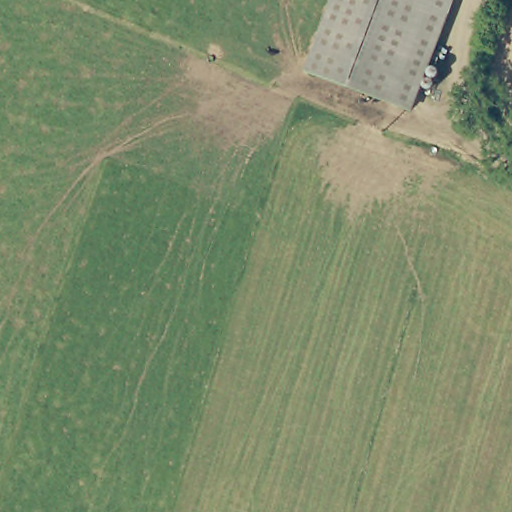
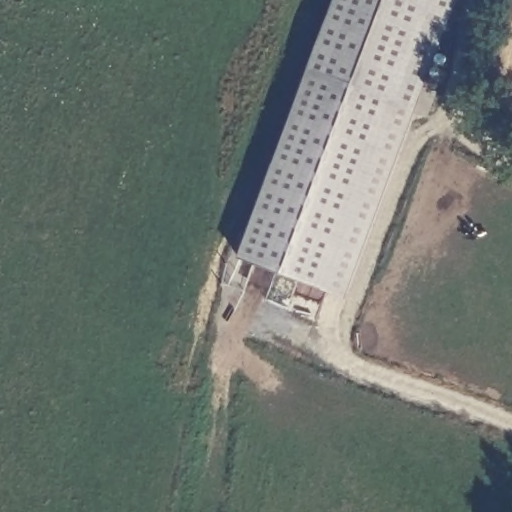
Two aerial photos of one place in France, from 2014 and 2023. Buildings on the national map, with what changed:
new [(348,300),(242,262),(312,74),(397,106),(437,0),(463,0),(348,300)]
unchanged [(397,106),(312,74),(339,0),(437,0),(397,106)]

